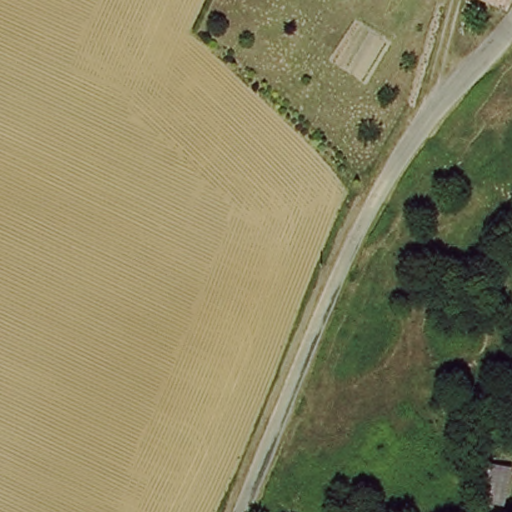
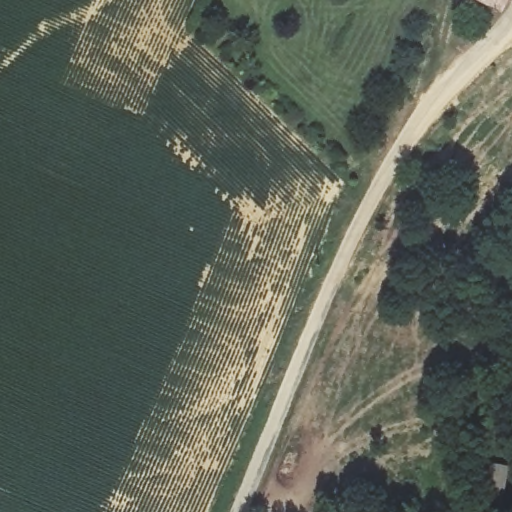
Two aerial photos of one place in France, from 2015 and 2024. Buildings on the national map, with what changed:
unchanged [(481,0),(505,0),(499,10),(481,0)]
unchanged [(503,510),(477,503),(487,462),(512,467),(512,473),(503,510)]

